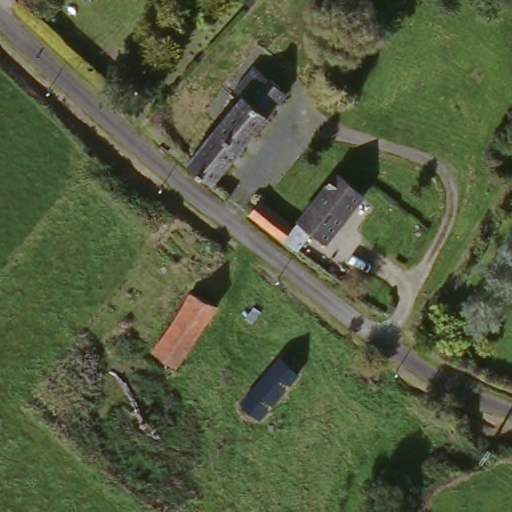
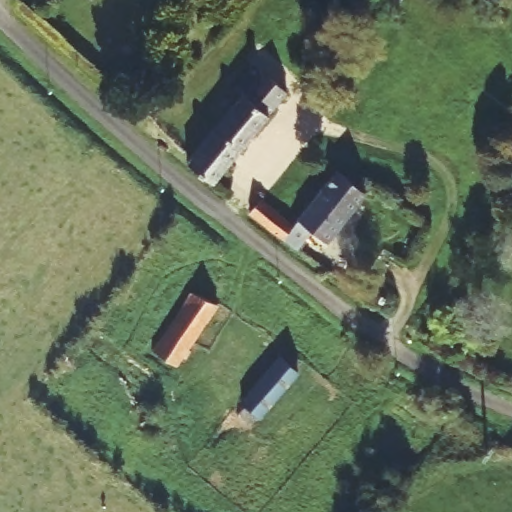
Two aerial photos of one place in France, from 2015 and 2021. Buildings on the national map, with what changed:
unchanged [(241,98),(266,120),(238,152),(213,130),(241,98)]
unchanged [(213,130),(238,152),(209,185),(183,164),(213,130)]
unchanged [(343,172),(369,194),(329,242),(303,221),(343,172)]
unchanged [(281,243),(248,216),(261,199),(295,226),(281,243)]
unchanged [(154,352),(178,322),(199,295),(221,312),(199,338),(176,367),(154,352)]
unchanged [(278,358),(300,375),(261,426),(238,408),(278,358)]

